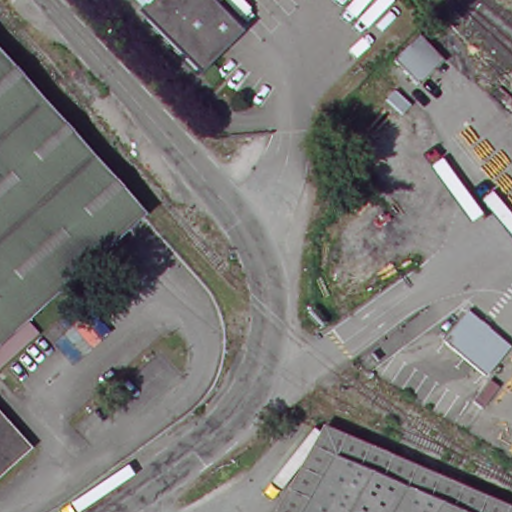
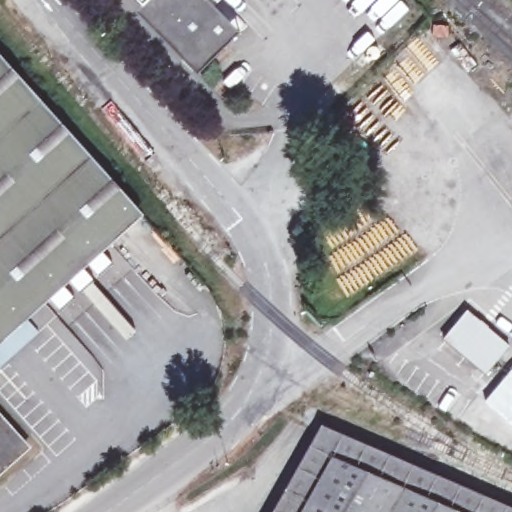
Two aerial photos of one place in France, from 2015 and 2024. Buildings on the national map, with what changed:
unchanged [(233,45),(215,62),(205,72),(152,17),(157,14),(145,0),(217,0),(230,13),(247,32),(233,45)]
unchanged [(0,341),(0,54),(144,213),(0,341)]
unchanged [(490,382),(440,338),(470,301),(512,336),(512,353),(490,382)]
new [(512,367),(512,423),(484,400),(512,367)]
unchanged [(0,474),(0,402),(36,442),(0,474)]
unchanged [(512,507),(512,512),(483,512),(334,451),(305,512),(285,512),(324,432),(512,507)]
unchanged [(483,512),(305,512),(334,451),(483,512)]

